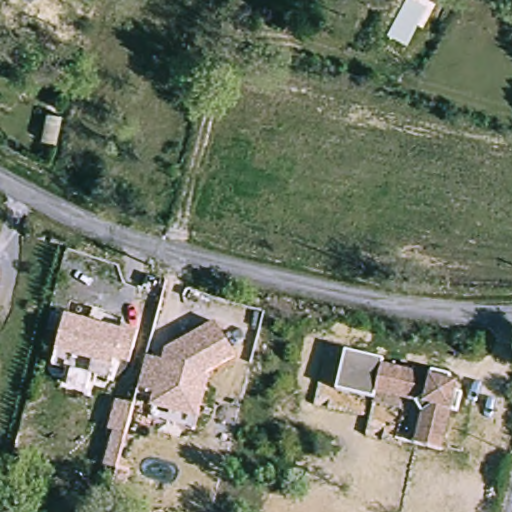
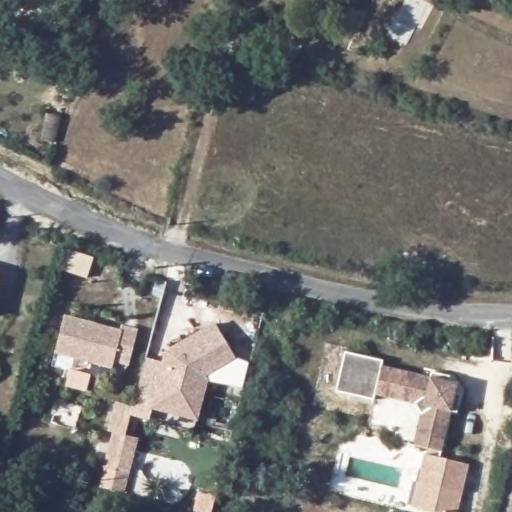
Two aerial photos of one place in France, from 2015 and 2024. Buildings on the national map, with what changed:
new [(91,255),(85,277),(58,269),(64,247),(91,255)]
unchanged [(137,329),(128,364),(113,359),(109,379),(90,374),(92,361),(55,352),(66,316),(121,331),(124,327),(137,329)]
unchanged [(167,350),(214,322),(235,361),(208,378),(196,419),(149,407),(152,394),(138,391),(147,357),(163,363),(167,350)]
unchanged [(420,428),(422,417),(415,404),(373,396),(373,403),(335,397),(341,357),(380,362),(379,369),(428,377),(428,373),(447,374),(447,381),(454,382),(453,392),(460,393),(457,410),(451,409),(448,431),(445,451),(417,447),(420,428)]
unchanged [(117,466),(132,469),(127,497),(111,493),(115,472),(104,468),(114,434),(108,433),(117,403),(132,407),(117,466)]
new [(416,484),(423,454),(467,466),(455,512),(426,512),(410,508),(416,484)]

